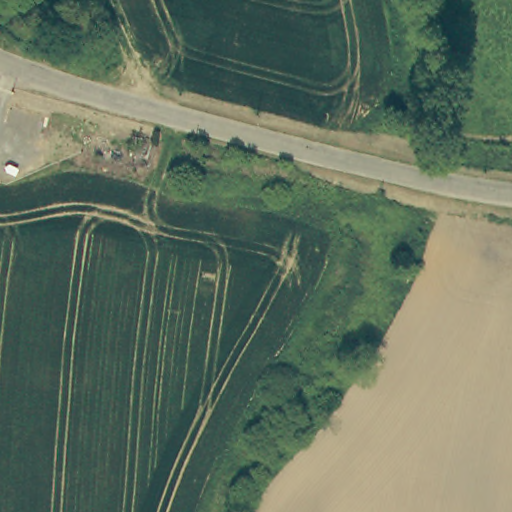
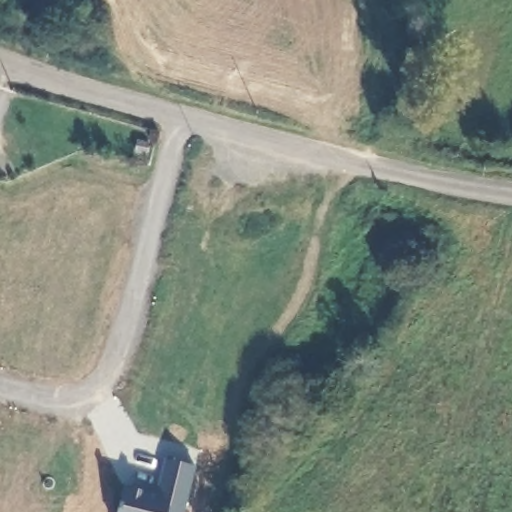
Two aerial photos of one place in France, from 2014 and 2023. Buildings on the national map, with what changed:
new [(186,512),(119,512),(124,486),(159,493),(167,459),(198,466),(186,512)]

